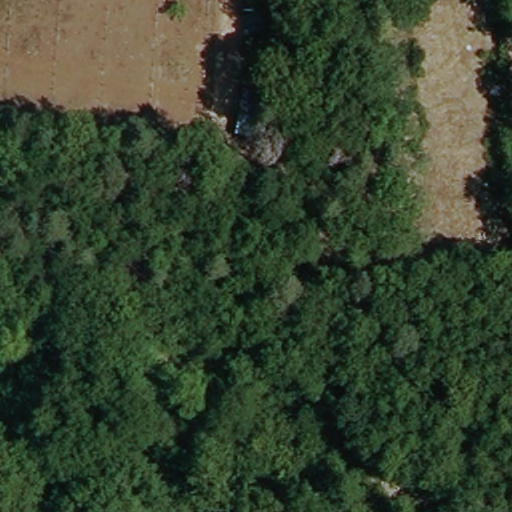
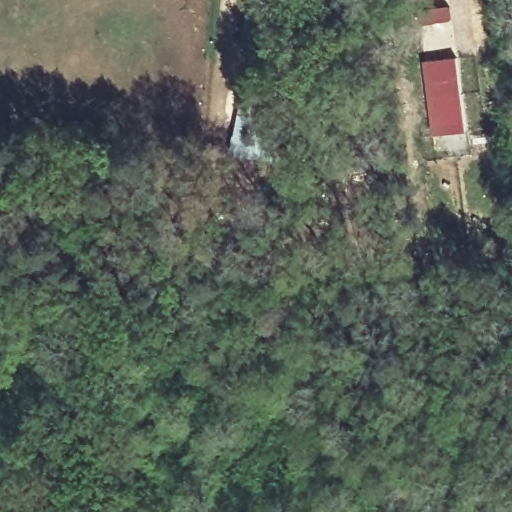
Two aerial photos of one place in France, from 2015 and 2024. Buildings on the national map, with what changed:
new [(457,55),(467,130),(431,135),(422,60),(457,55)]

